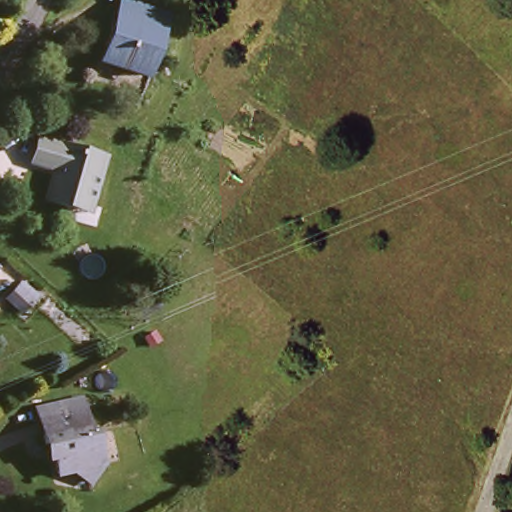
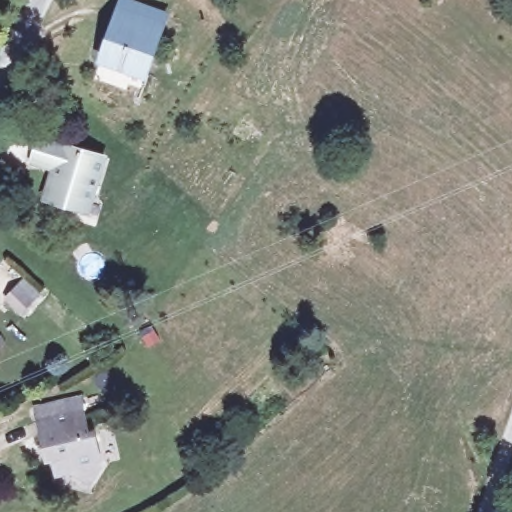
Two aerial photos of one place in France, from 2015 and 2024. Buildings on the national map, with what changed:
unchanged [(124,8),(128,0),(137,0),(172,20),(166,32),(143,74),(101,50),(124,8)]
unchanged [(62,206),(42,196),(57,164),(36,155),(47,132),(108,160),(87,207),(82,215),(62,206)]
unchanged [(10,303),(0,290),(0,289),(12,280),(22,295),(10,303)]
unchanged [(81,402),(88,426),(94,423),(104,453),(92,471),(73,462),(59,468),(50,437),(44,439),(38,415),(81,402)]

